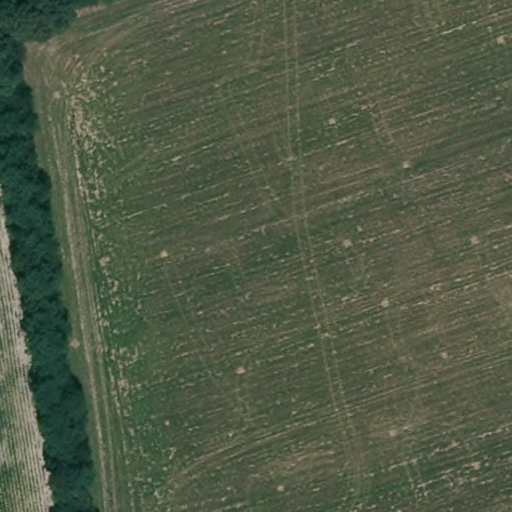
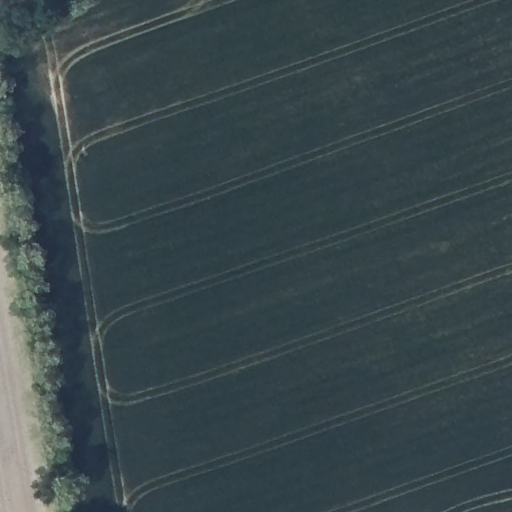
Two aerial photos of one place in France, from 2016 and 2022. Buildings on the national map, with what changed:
[]

